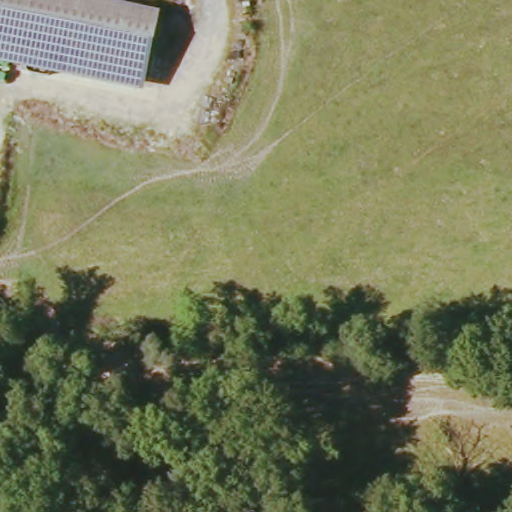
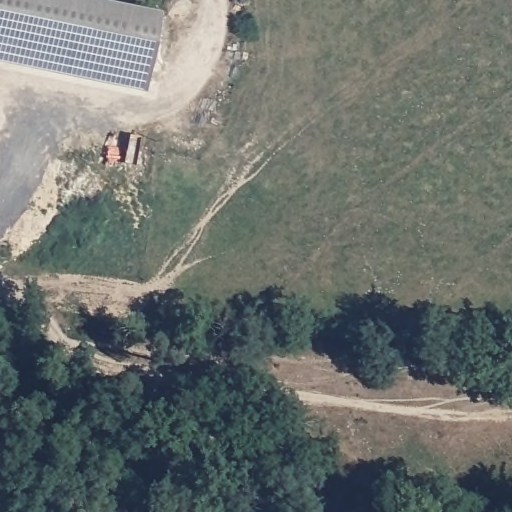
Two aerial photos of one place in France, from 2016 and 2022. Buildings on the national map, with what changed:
unchanged [(143,83),(0,58),(0,0),(96,0),(158,13),(143,83)]

